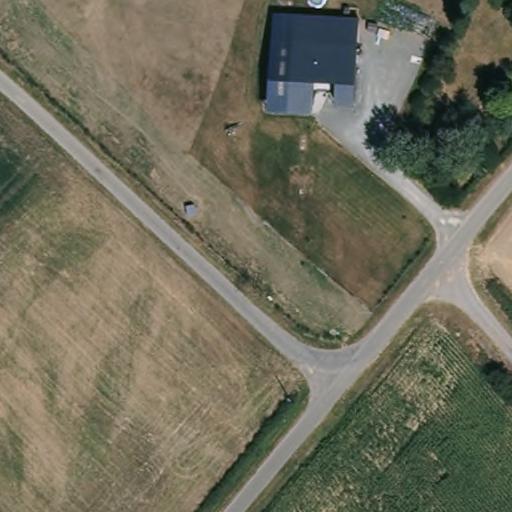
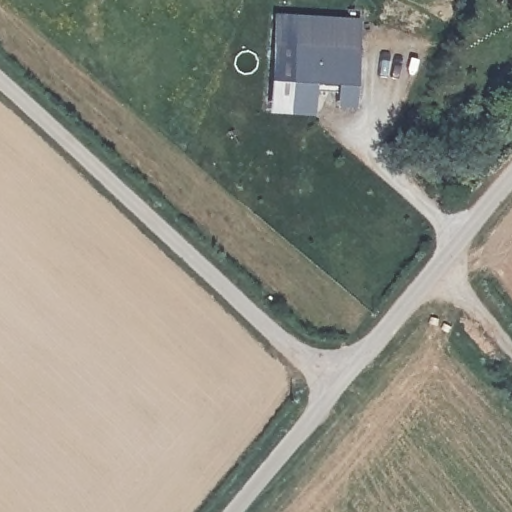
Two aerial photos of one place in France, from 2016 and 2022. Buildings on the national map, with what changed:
unchanged [(267,111),(277,14),(360,19),(357,108),(335,107),(336,87),(314,86),(312,116),(267,111)]

